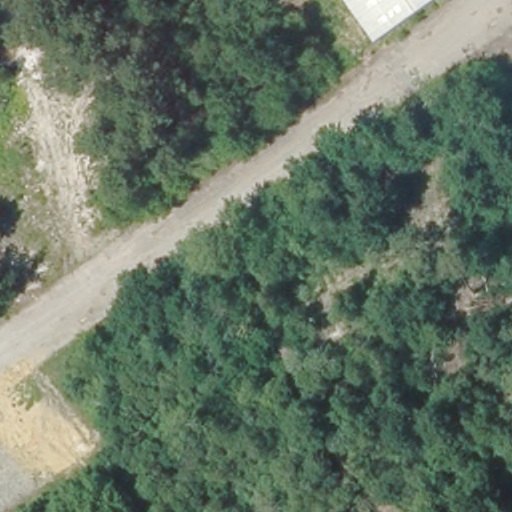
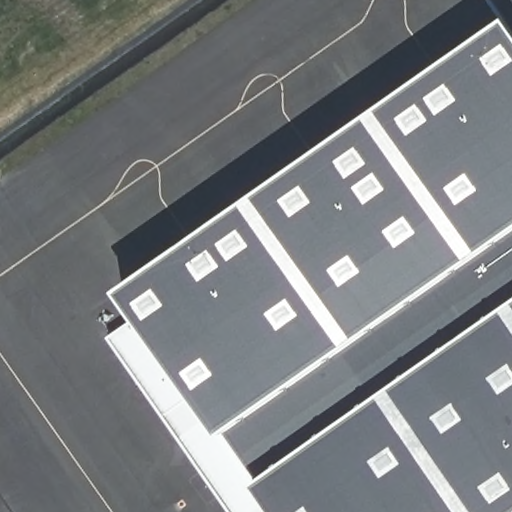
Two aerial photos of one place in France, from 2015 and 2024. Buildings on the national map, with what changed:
demolished [(380,39),(353,0),(436,0),(380,39)]
new [(509,17),(504,21),(490,0),(512,0),(512,22),(509,17)]
new [(512,22),(512,232),(223,434),(139,317),(120,292),(504,21),(509,17),(512,22)]
new [(512,232),(512,304),(256,484),(276,512),(232,512),(110,337),(139,317),(223,434),(512,232)]
new [(276,512),(256,484),(512,304),(512,512),(276,512)]

